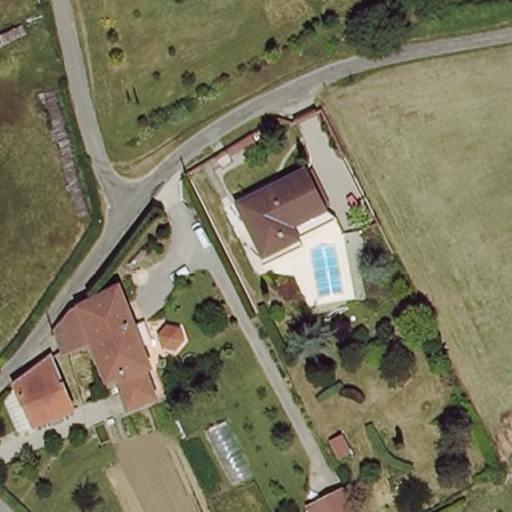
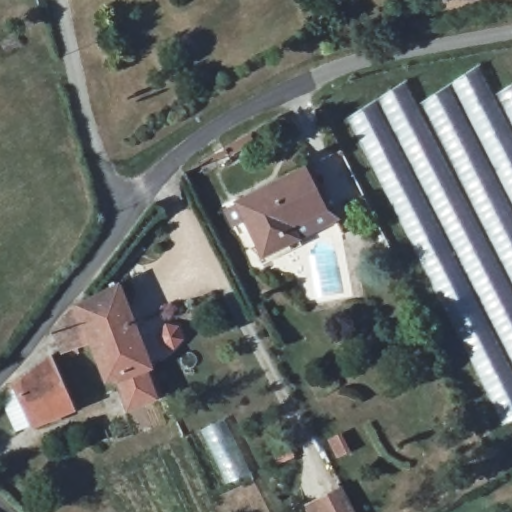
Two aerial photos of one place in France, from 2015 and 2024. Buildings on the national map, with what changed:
new [(415,102),(480,62),(497,87),(512,77),(512,419),(503,425),(343,116),(402,79),(415,102)]
unchanged [(286,233),(263,247),(231,197),(296,155),(319,194),(289,213),(296,226),(286,233)]
unchanged [(160,360),(156,362),(123,370),(111,375),(103,349),(98,337),(70,345),(63,326),(69,317),(76,308),(87,304),(130,280),(160,360)]
unchanged [(63,403),(65,409),(51,414),(50,408),(37,415),(25,377),(26,373),(57,350),(76,399),(63,403)]
unchanged [(166,393),(135,401),(123,370),(156,362),(166,393)]
unchanged [(355,512),(326,512),(318,495),(341,484),(355,512)]

